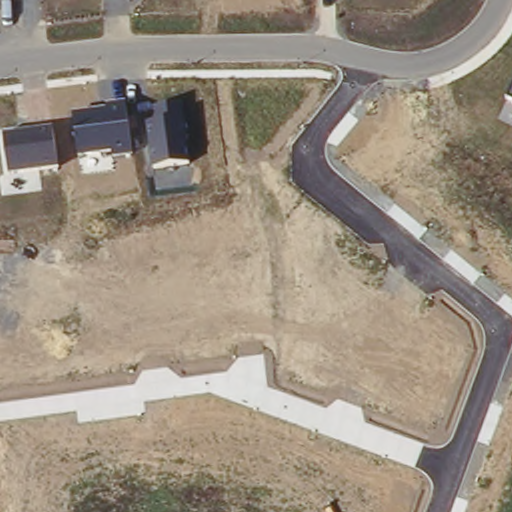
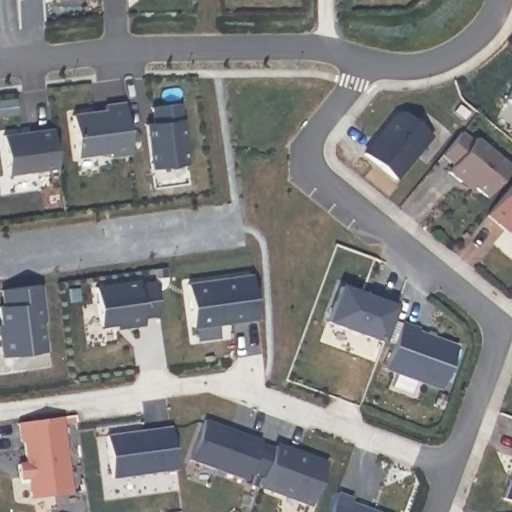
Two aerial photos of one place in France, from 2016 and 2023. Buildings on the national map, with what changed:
unchanged [(507,100),(512,89),(512,102),(507,100)]
unchanged [(114,160),(114,153),(78,159),(73,117),(108,112),(106,106),(128,104),(134,155),(114,160)]
unchanged [(149,125),(158,124),(155,105),(182,104),(192,165),(154,170),(149,125)]
new [(367,151),(398,114),(408,112),(434,133),(398,176),(367,151)]
unchanged [(61,170),(9,177),(3,137),(54,129),(61,170)]
new [(471,147),(474,144),(509,171),(484,201),(462,182),(458,186),(447,176),(452,170),(441,160),(459,136),(471,147)]
new [(501,225),(497,229),(485,219),(512,187),(512,235),(501,225)]
new [(254,280),(259,320),(195,328),(190,287),(254,280)]
new [(161,316),(144,319),(145,326),(125,328),(125,325),(102,327),(98,290),(141,284),(141,287),(157,285),(161,316)]
new [(43,286),(46,322),(43,323),(47,353),(5,359),(3,337),(5,337),(1,308),(6,307),(4,291),(43,286)]
new [(328,325),(341,290),(377,302),(379,298),(399,305),(383,346),(328,325)]
new [(418,332),(417,335),(457,350),(441,391),(386,371),(402,326),(418,332)]
new [(60,417),(70,493),(32,498),(30,476),(19,477),(19,463),(26,463),(24,440),(22,440),(19,423),(60,417)]
new [(204,420),(275,445),(264,475),(250,470),(248,481),(190,461),(204,420)]
new [(171,428),(177,470),(111,478),(107,436),(171,428)]
new [(275,445),(289,450),(290,448),(327,462),(312,505),(260,486),(275,445)]
new [(512,481),(512,508),(503,505),(512,481)]
new [(354,498),(352,503),(378,512),(329,512),(337,493),(354,498)]

